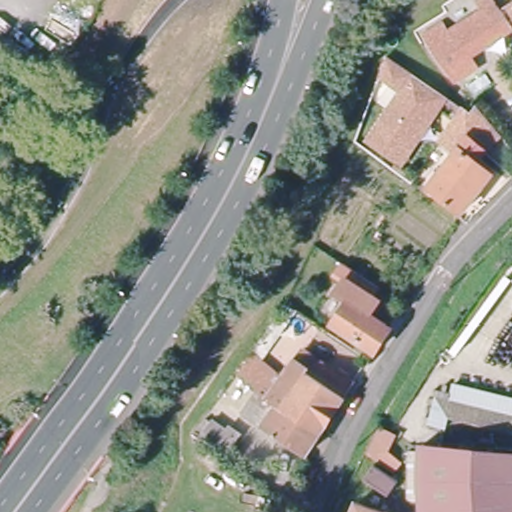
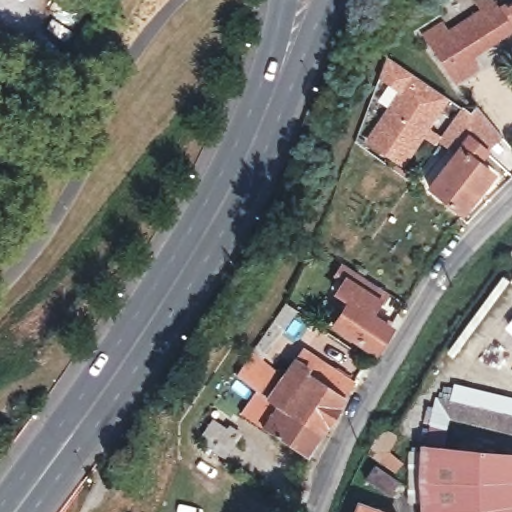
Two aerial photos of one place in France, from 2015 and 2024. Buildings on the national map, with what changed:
unchanged [(429,41),(426,37),(444,26),(446,30),(449,34),(487,9),(485,6),(482,2),(486,0),(498,0),(504,10),(512,22),(512,33),(473,58),(481,69),(464,80),(458,84),(436,52),(431,45),(429,41)]
unchanged [(397,163),(363,141),(396,91),(374,76),(381,57),(408,74),(441,97),(397,163)]
unchanged [(457,159),(444,175),(434,167),(429,163),(454,128),(460,132),(461,131),(464,126),(490,158),(476,175),(473,172),(457,159)]
unchanged [(464,183),(480,196),(449,234),(417,209),(444,175),(457,159),(473,172),(464,183)]
unchanged [(375,359),(374,358),(331,330),(347,307),(340,303),(336,300),(344,286),(349,289),(377,307),(368,321),(389,334),(390,336),(375,359)]
unchanged [(251,393),(232,379),(245,359),(280,306),(291,313),(255,366),(276,380),(281,383),(300,353),(348,385),(314,436),(300,458),(246,421),(237,415),(251,393)]
unchanged [(415,488),(415,474),(417,460),(419,446),(512,459),(512,512),(416,512),(415,502),(415,488)]
unchanged [(392,482),(383,495),(360,481),(368,467),(392,482)]
unchanged [(386,512),(359,512),(363,502),(386,512)]

